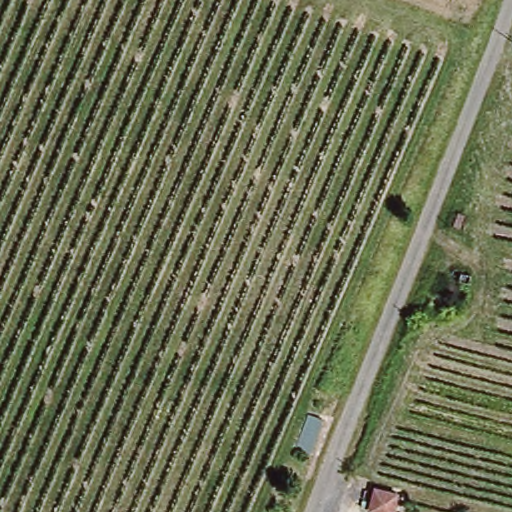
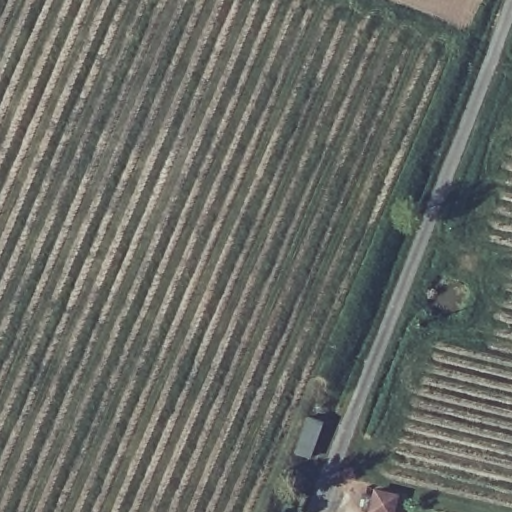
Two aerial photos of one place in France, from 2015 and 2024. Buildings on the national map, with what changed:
unchanged [(380,486),(403,491),(402,496),(398,512),(388,512),(375,509),(379,491),(380,486)]

